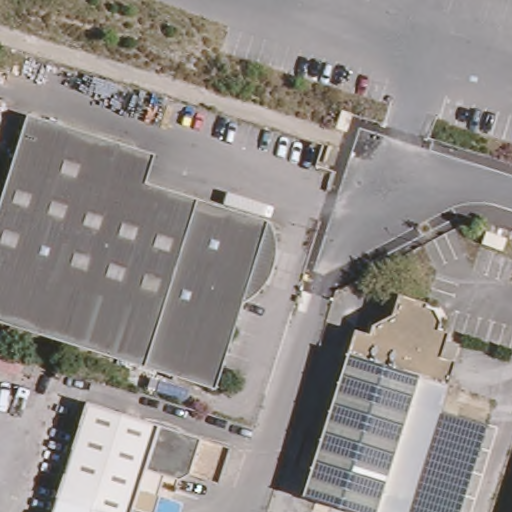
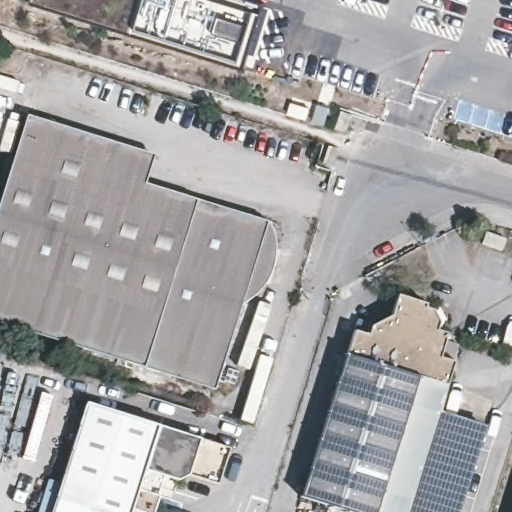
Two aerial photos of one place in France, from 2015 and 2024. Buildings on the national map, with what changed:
new [(243,69),(29,4),(30,0),(251,0),(264,4),(243,69)]
unchanged [(271,234),(275,248),(274,262),(272,272),(266,286),(256,297),(241,309),(213,395),(0,327),(0,195),(25,117),(77,133),(94,80),(167,101),(148,155),(135,151),(152,157),(142,186),(267,225),(271,234)]
unchanged [(359,328),(374,333),(378,320),(392,315),(399,292),(429,300),(427,307),(436,308),(444,320),(442,327),(450,330),(443,353),(456,357),(449,382),(441,411),(487,425),(460,512),(354,512),(307,497),(359,328)]
unchanged [(158,512),(143,512),(135,510),(134,512),(57,512),(91,403),(235,448),(223,485),(194,476),(183,482),(169,478),(163,497),(158,512)]

